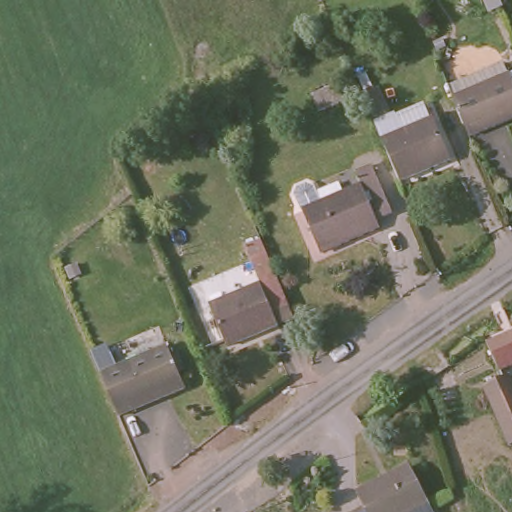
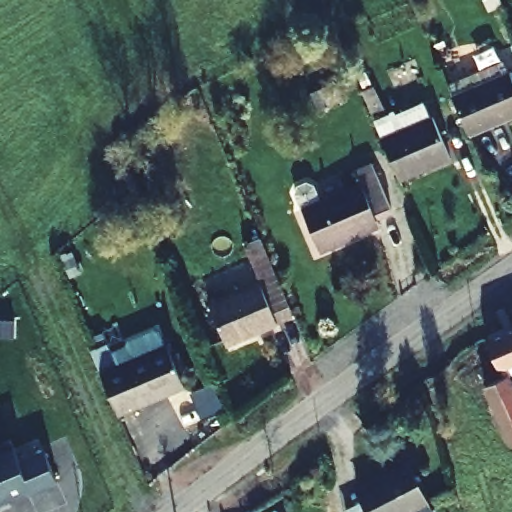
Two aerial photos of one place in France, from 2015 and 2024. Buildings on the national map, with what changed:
unchanged [(487,0),(501,0),(502,4),(491,9),(487,0)]
unchanged [(448,84),(504,61),(511,79),(512,79),(512,118),(470,135),(452,94),(448,84)]
unchanged [(332,90),(340,87),(345,101),(319,111),(312,95),(330,87),(332,90)]
unchanged [(382,125),(430,105),(436,119),(437,118),(455,159),(405,180),(387,139),(382,125)]
unchanged [(296,189),(300,182),(309,179),(315,181),(317,185),(322,198),(361,182),(356,167),(374,161),(392,207),(375,214),(379,224),(320,247),(296,189)]
unchanged [(207,317),(215,313),(211,302),(262,281),(254,258),(270,251),(294,308),(296,315),(280,321),(227,342),(223,331),(215,335),(207,317)]
unchanged [(500,369),(489,343),(512,332),(512,364),(500,369)]
unchanged [(100,375),(167,347),(185,388),(119,418),(100,375)]
unchanged [(486,387),(509,376),(512,383),(512,445),(486,387)]
new [(18,459),(42,448),(55,480),(0,504),(0,452),(12,446),(18,459)]
unchanged [(452,488),(455,496),(434,507),(436,512),(360,512),(370,507),(362,488),(412,463),(430,500),(452,488)]

